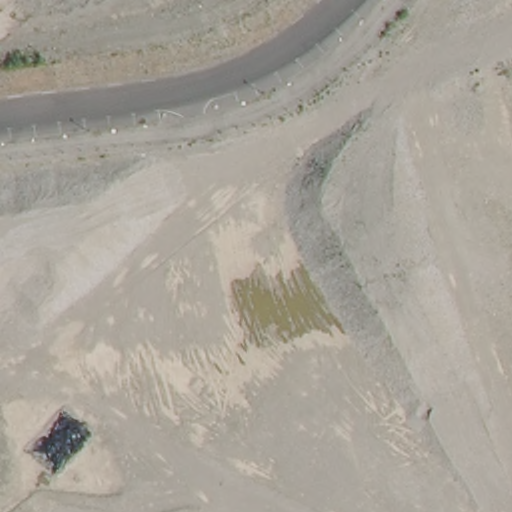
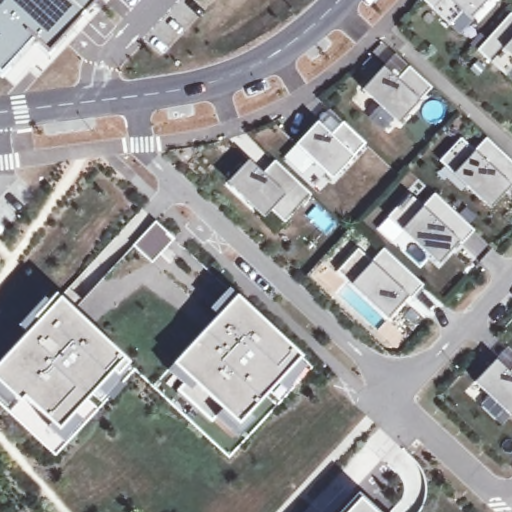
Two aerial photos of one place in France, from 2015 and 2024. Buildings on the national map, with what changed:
new [(35,43),(32,46),(31,45),(0,77),(0,0),(93,0),(46,53),(35,43)]
new [(463,12),(450,25),(424,0),(487,0),(470,19),(463,12)]
new [(477,50),(510,14),(512,15),(512,70),(506,76),(477,50)]
new [(383,66),(397,79),(410,66),(431,88),(399,123),(362,90),(383,66)]
new [(317,122),(331,135),(342,123),(365,144),(332,179),(296,145),(317,122)]
new [(512,188),(510,187),(492,206),(483,198),(481,200),(439,161),(460,138),(473,151),(486,139),(512,162),(512,188)]
new [(310,195),(284,223),(270,210),(263,218),(238,194),(241,190),(230,179),(248,160),(262,173),(275,161),(310,195)]
new [(473,231),(461,244),(458,242),(440,262),(431,254),(429,256),(387,217),(408,194),(422,207),(434,194),(473,231)]
new [(175,239),(151,263),(132,246),(155,222),(175,239)]
new [(422,286),(410,300),(407,298),(389,317),(380,309),(378,311),(336,272),(357,249),(370,262),(382,249),(422,286)]
new [(301,356),(238,425),(222,410),(211,422),(176,391),(188,378),(172,364),(236,295),(301,356)]
new [(22,397),(18,402),(0,385),(0,359),(58,297),(127,363),(115,375),(111,371),(56,430),(22,397)]
new [(474,383),(495,360),(509,373),(512,370),(512,415),(510,417),(474,383)]
new [(358,499),(373,512),(345,512),(358,499)]

